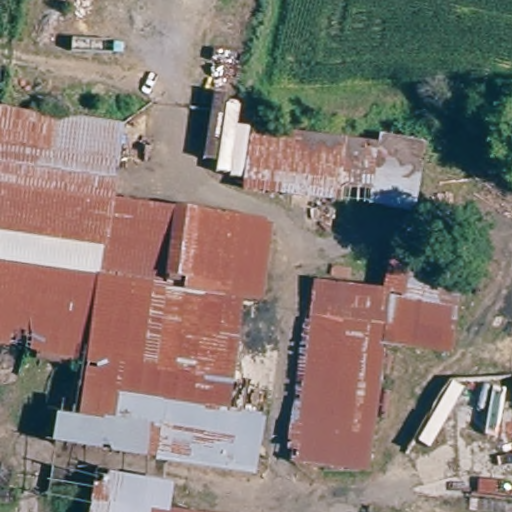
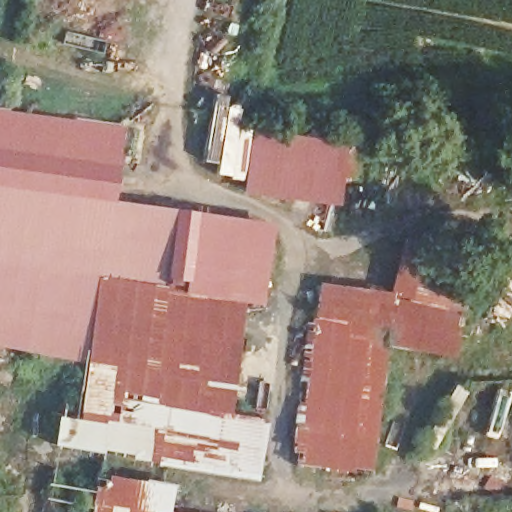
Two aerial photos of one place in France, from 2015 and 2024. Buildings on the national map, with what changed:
unchanged [(232,219),(273,225),(260,311),(242,308),(228,414),(264,419),(253,483),(154,467),(159,435),(78,421),(88,348),(0,336),(0,111),(123,129),(115,203),(232,219)]
unchanged [(258,130),(345,143),(336,205),(242,192),(243,180),(250,129),(258,130)]
demolished [(423,153),(416,215),(370,209),(377,147),(423,153)]
unchanged [(392,289),(400,235),(471,247),(454,351),(386,343),(371,470),(288,460),(316,278),(392,289)]
unchanged [(173,512),(91,512),(97,474),(173,484),(170,512),(173,512)]

